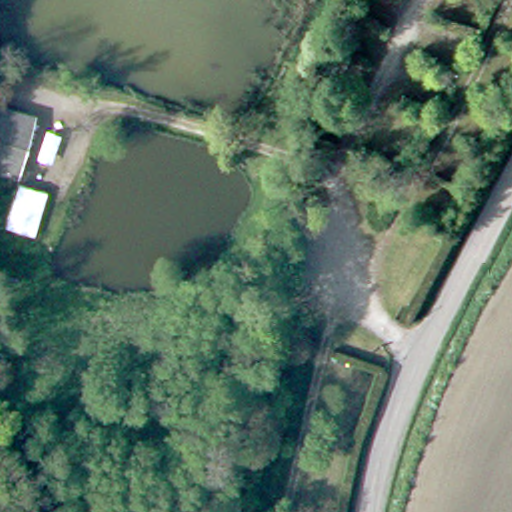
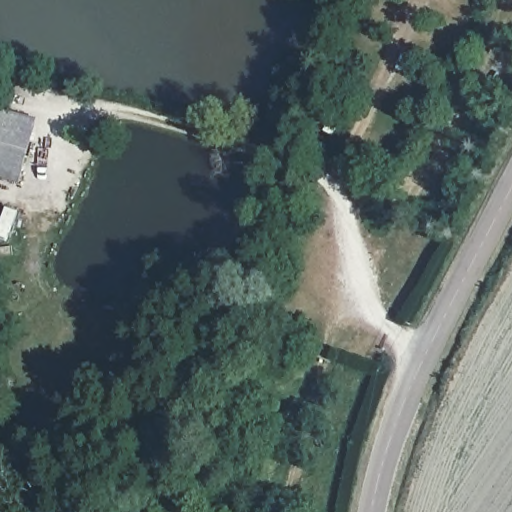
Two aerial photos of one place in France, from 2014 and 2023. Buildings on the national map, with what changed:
unchanged [(17,183),(0,179),(0,111),(35,121),(17,183)]

